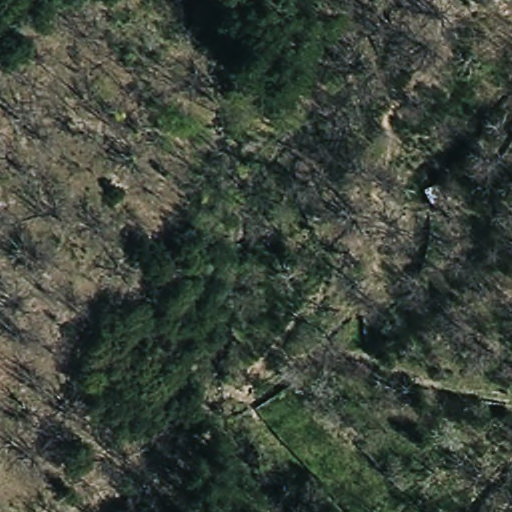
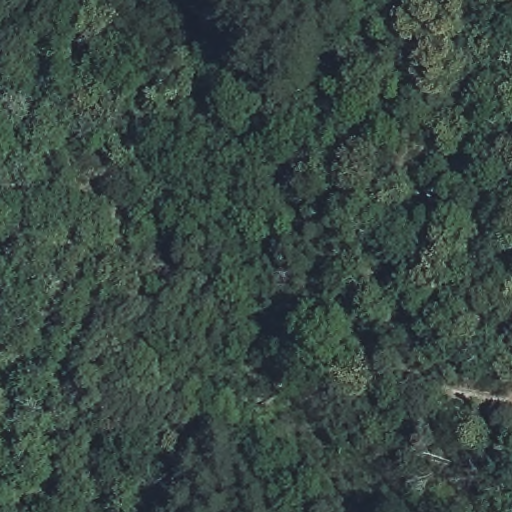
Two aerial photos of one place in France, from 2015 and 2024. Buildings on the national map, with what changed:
unchanged [(435,188),(456,181),(462,200),(443,207),(435,188)]

